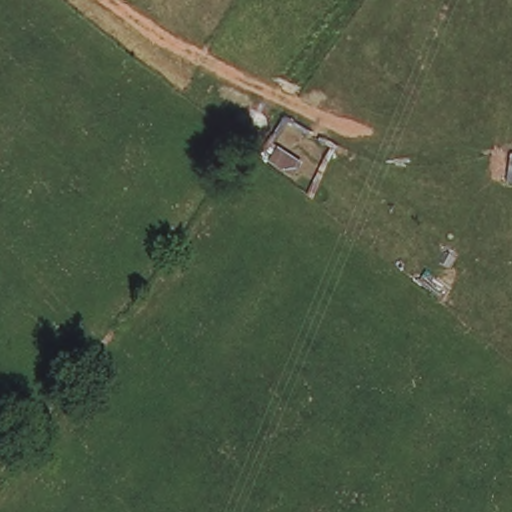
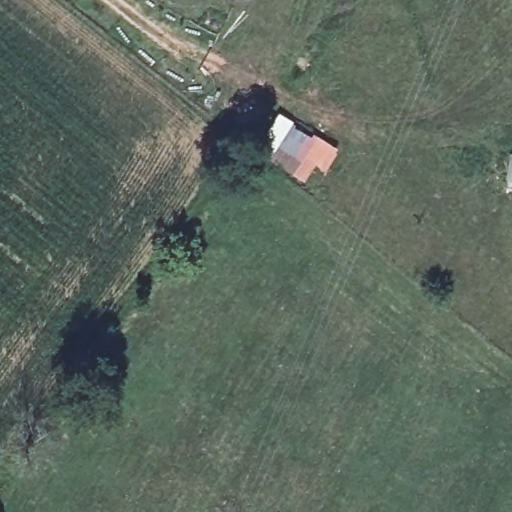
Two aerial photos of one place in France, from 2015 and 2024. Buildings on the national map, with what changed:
new [(266,141),(262,138),(278,112),(336,148),(322,170),(316,166),(304,182),(259,154),(266,141)]

